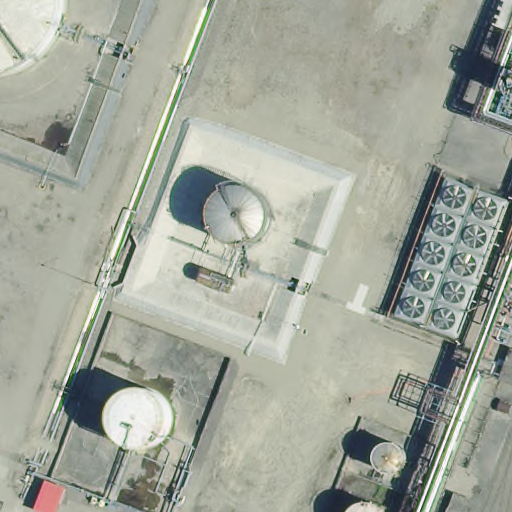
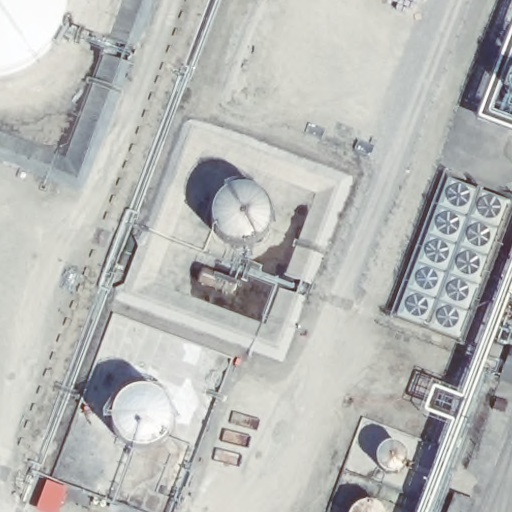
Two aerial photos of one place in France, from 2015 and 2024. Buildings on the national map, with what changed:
unchanged [(512,353),(512,382),(499,377),(507,352),(512,353)]
unchanged [(453,495),(470,501),(466,512),(447,512),(453,495)]

